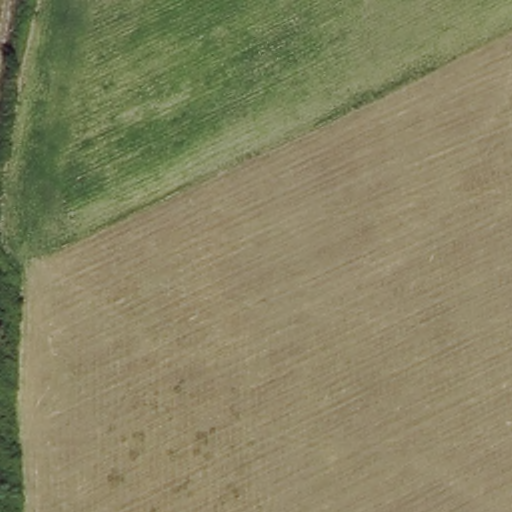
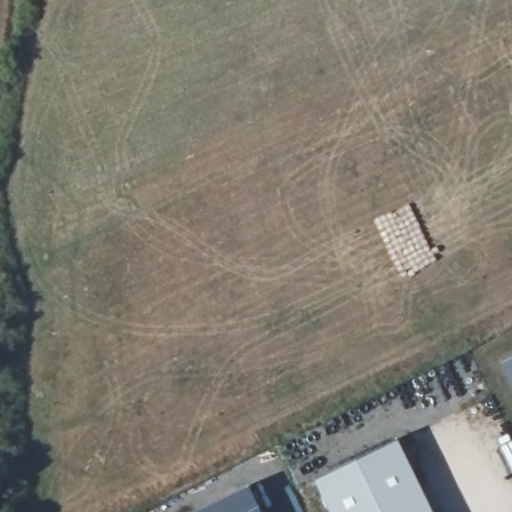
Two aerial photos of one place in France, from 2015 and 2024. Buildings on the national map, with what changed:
new [(512,357),(512,384),(502,362),(512,357)]
new [(434,512),(330,512),(316,481),(401,441),(434,512)]
new [(265,512),(197,512),(251,485),(265,512)]

